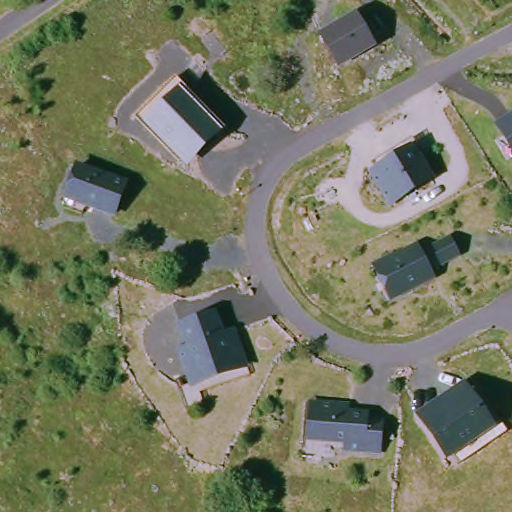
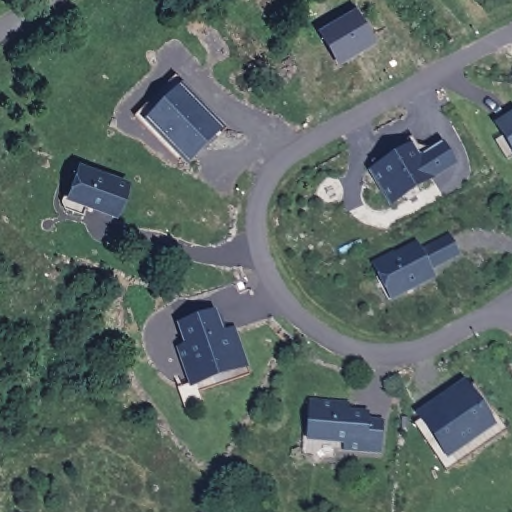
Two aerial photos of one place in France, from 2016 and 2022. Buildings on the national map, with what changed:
unchanged [(377,39),(345,58),(327,31),(360,11),(377,39)]
unchanged [(221,122),(191,152),(158,119),(188,89),(221,122)]
unchanged [(498,142),(507,136),(499,124),(512,116),(512,160),(510,161),(498,142)]
unchanged [(370,175),(396,160),(392,155),(413,142),(423,160),(437,185),(393,211),(370,175)]
unchanged [(65,201),(77,165),(132,184),(119,221),(65,201)]
unchanged [(375,267),(417,243),(420,251),(452,235),(462,257),(431,272),(436,284),(393,304),(375,267)]
unchanged [(250,379),(198,396),(195,387),(184,354),(188,353),(180,332),(215,320),(222,341),(226,340),(235,337),(250,379)]
unchanged [(495,426),(502,424),(507,430),(460,464),(455,455),(447,459),(415,416),(465,382),(495,426)]
unchanged [(362,409),(360,417),(376,421),(375,427),(390,431),(382,459),(350,451),(352,444),(320,435),(315,455),(305,452),(320,398),(330,401),(350,406),(362,409)]

